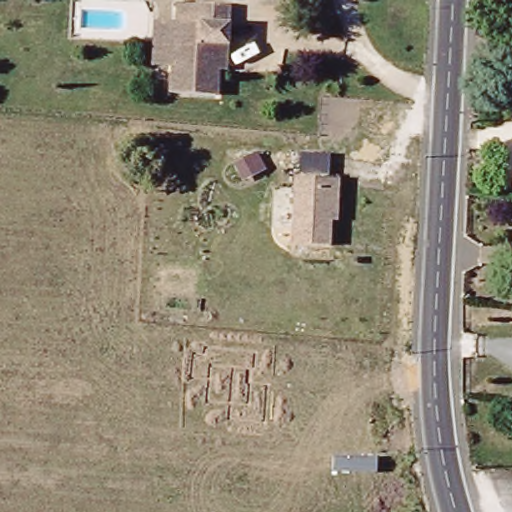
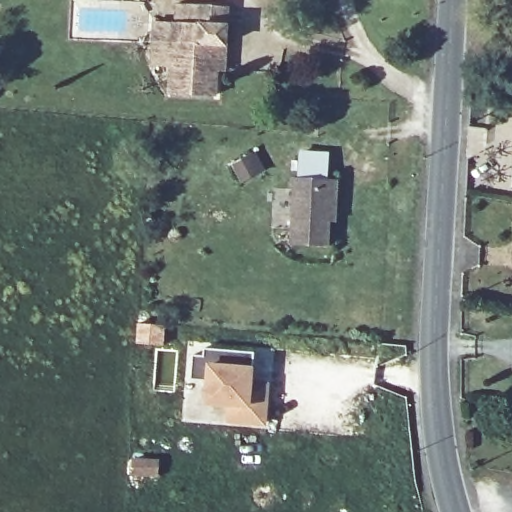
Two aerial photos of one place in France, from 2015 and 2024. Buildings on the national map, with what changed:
unchanged [(217,94),(175,92),(176,67),(156,66),(157,21),(177,22),(181,22),(181,2),(204,4),(233,5),(231,43),(230,70),(218,69),(217,94)]
unchanged [(294,249),(292,182),(338,182),(338,198),(339,224),(332,224),(332,249),(294,249)]
new [(204,357),(205,348),(254,352),(254,366),(253,378),(270,383),(268,426),(226,423),(227,406),(204,405),(205,378),(191,378),(193,356),(204,357)]

